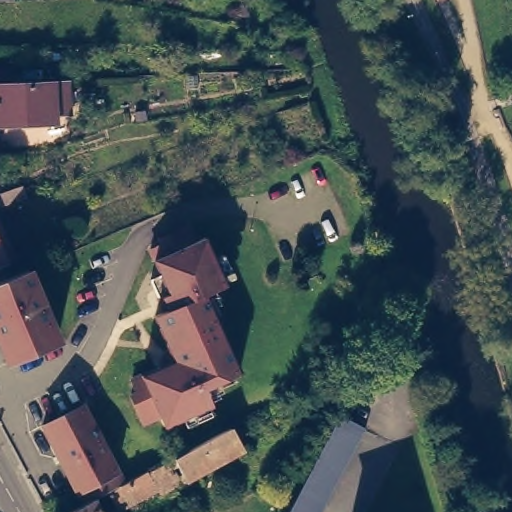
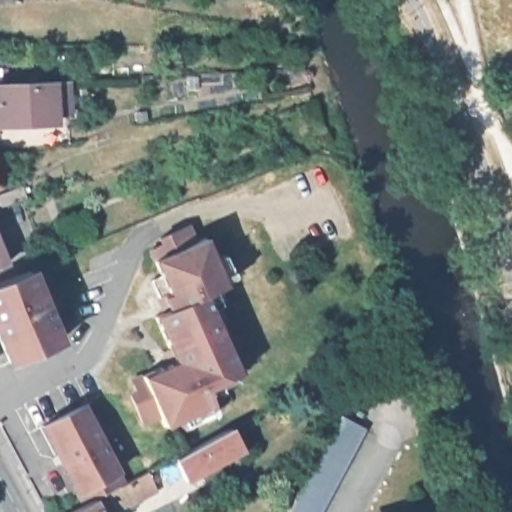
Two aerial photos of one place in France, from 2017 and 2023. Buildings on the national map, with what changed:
unchanged [(73,113),(62,113),(62,121),(2,124),(0,86),(72,83),(73,113)]
unchanged [(1,202),(0,200),(0,189),(22,181),(27,193),(1,202)]
unchanged [(10,259),(0,264),(0,233),(10,259)]
unchanged [(137,372),(164,359),(143,310),(167,299),(148,260),(207,233),(230,289),(214,298),(249,380),(217,394),(221,410),(162,437),(137,372)]
unchanged [(53,276),(54,278),(46,282),(37,278),(31,280),(57,343),(10,362),(0,338),(0,282),(27,271),(53,262),(48,249),(64,243),(70,256),(75,266),(53,276)]
unchanged [(82,493),(48,426),(88,405),(122,471),(128,483),(99,499),(88,505),(82,493)]
unchanged [(370,423),(324,512),(291,512),(345,410),(370,423)]
unchanged [(180,458),(235,428),(247,450),(192,480),(180,458)]
unchanged [(128,483),(152,471),(147,463),(166,453),(172,462),(180,458),(192,480),(165,494),(162,490),(140,500),(142,506),(137,509),(134,505),(120,512),(106,512),(99,499),(128,483)]
unchanged [(88,505),(99,499),(106,512),(75,512),(88,505)]

